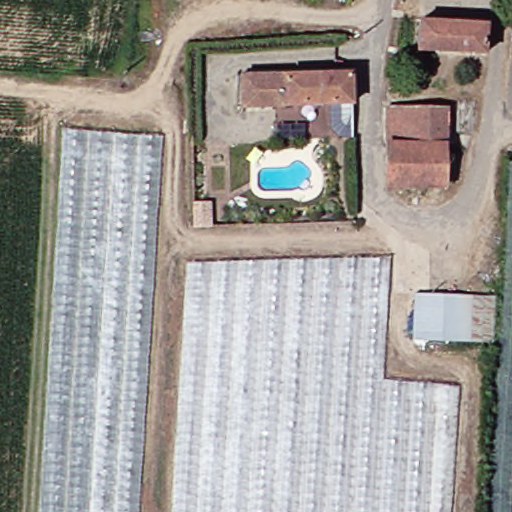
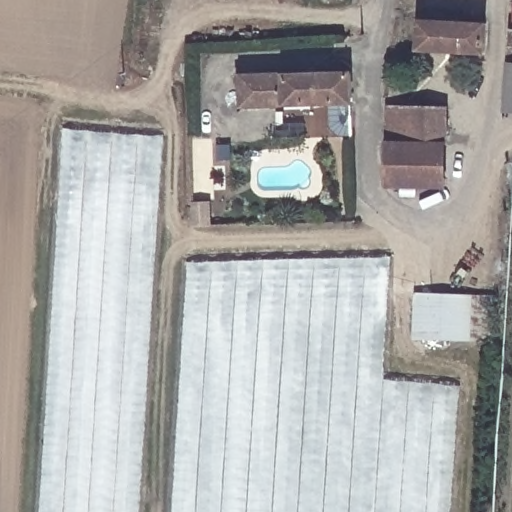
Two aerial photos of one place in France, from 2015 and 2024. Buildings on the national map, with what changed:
unchanged [(486,54),(424,51),(424,23),(488,27),(486,54)]
unchanged [(245,104),(245,77),(280,74),(352,74),(352,103),(281,103),(245,104)]
unchanged [(455,186),(380,183),(383,141),(386,142),(388,124),(396,124),(396,109),(424,108),(458,110),(455,186)]
unchanged [(141,512),(42,512),(68,129),(164,135),(141,512)]
unchanged [(512,512),(490,512),(512,188),(512,512)]
unchanged [(387,381),(463,386),(456,512),(177,512),(190,263),(394,259),(387,381)]
unchanged [(486,343),(430,339),(434,294),(487,297),(486,343)]

